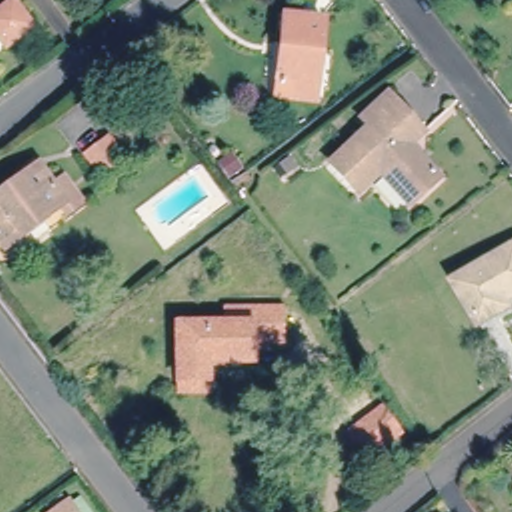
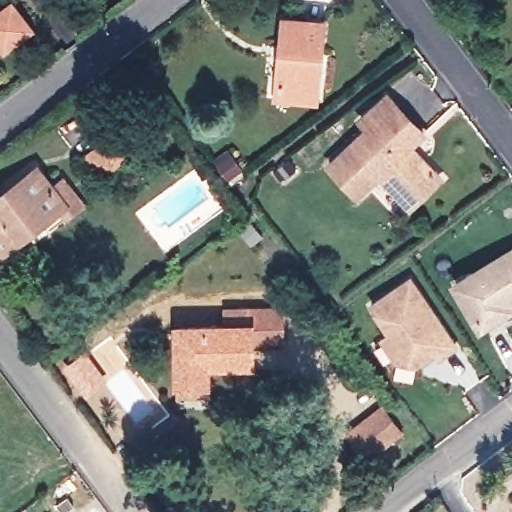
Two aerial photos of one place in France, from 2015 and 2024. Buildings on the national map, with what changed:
unchanged [(31,30),(5,51),(0,45),(0,11),(10,3),(31,30)]
unchanged [(278,90),(278,80),(284,19),(322,22),(316,84),(315,95),(278,90)]
unchanged [(425,141),(410,155),(438,187),(408,214),(379,180),(358,199),(332,169),(371,135),(363,127),(390,102),(425,141)]
unchanged [(106,136),(122,157),(98,174),(82,152),(106,136)]
unchanged [(289,159),(296,168),(282,180),(275,171),(289,159)]
unchanged [(0,207),(4,204),(37,178),(51,196),(61,188),(79,212),(69,220),(63,212),(4,257),(0,251),(0,207)]
unchanged [(512,251),(512,302),(503,307),(506,313),(485,327),(477,331),(452,288),(512,251)]
new [(407,281),(452,347),(436,358),(432,352),(414,365),(395,361),(380,340),(388,334),(369,306),(407,281)]
unchanged [(202,363),(202,382),(173,382),(173,327),(222,327),(222,310),(277,309),(277,337),(277,344),(246,345),(246,363),(202,363)]
unchanged [(368,457),(352,437),(350,433),(381,410),(385,413),(400,433),(368,457)]
demolished [(76,512),(54,512),(68,502),(76,512)]

